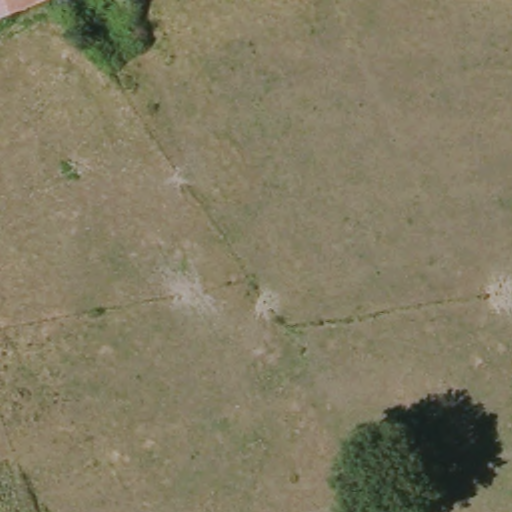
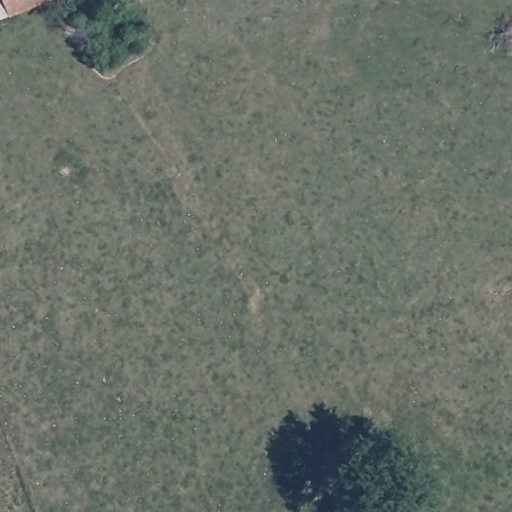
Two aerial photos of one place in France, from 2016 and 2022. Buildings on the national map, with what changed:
unchanged [(0,20),(0,0),(47,0),(8,16),(0,20)]

